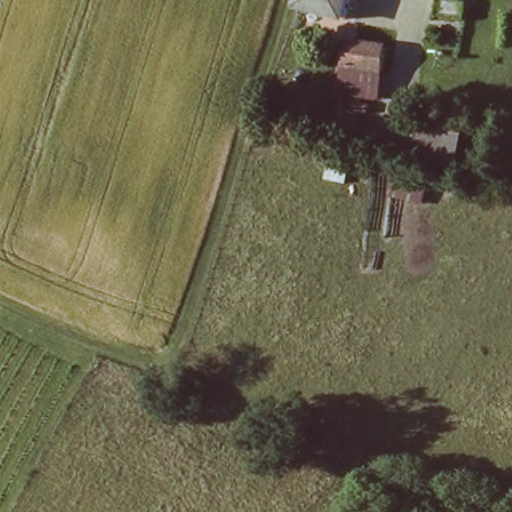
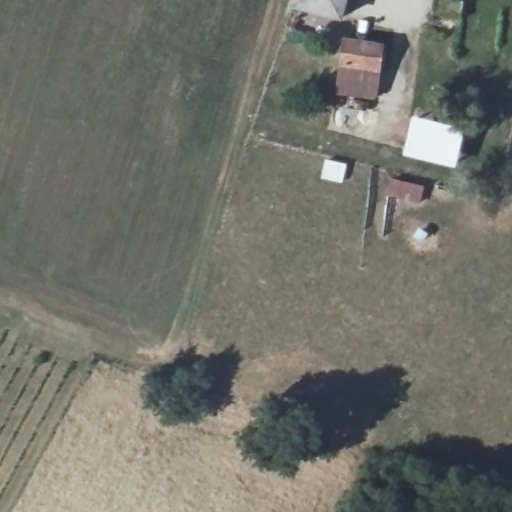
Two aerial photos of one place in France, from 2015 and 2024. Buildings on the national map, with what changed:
unchanged [(294,0),(349,0),(345,20),(292,8),(294,0)]
unchanged [(333,99),(341,40),(383,44),(377,104),(333,99)]
new [(412,115),(466,127),(456,168),(402,155),(412,115)]
new [(390,178),(424,185),(420,204),(386,195),(390,178)]

